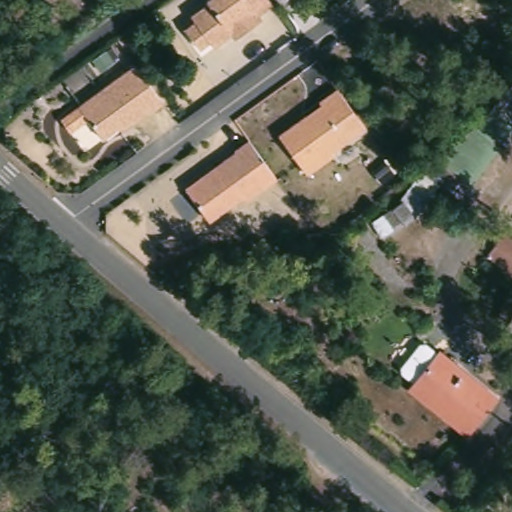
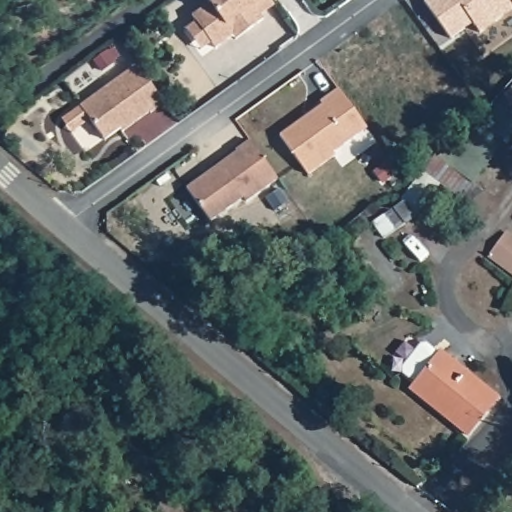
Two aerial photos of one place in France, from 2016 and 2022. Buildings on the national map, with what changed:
unchanged [(185,29),(194,21),(190,16),(208,2),(206,0),(269,0),(273,6),(259,16),(262,20),(245,31),(234,39),(231,35),(214,47),(210,42),(200,50),(185,29)]
new [(428,0),(512,0),(512,10),(478,35),(471,25),(449,41),(423,4),(428,0)]
unchanged [(121,128),(101,140),(78,110),(136,69),(162,105),(124,132),(121,128)]
unchanged [(318,106),(338,92),(365,133),(329,157),(332,160),(309,175),(279,138),(320,108),(318,106)]
unchanged [(506,137),(460,177),(437,160),(488,116),(506,137)]
unchanged [(243,200),(210,224),(200,210),(186,190),(202,178),(214,169),(236,154),(235,152),(249,142),(277,182),(246,204),(243,200)]
unchanged [(479,192),(467,207),(422,173),(434,157),(437,160),(460,177),(479,192)]
unchanged [(512,245),(512,282),(487,263),(504,239),(512,245)]
unchanged [(440,361),(442,359),(496,403),(467,440),(454,428),(456,427),(416,392),(417,391),(404,381),(404,373),(421,352),(428,350),(440,361)]

